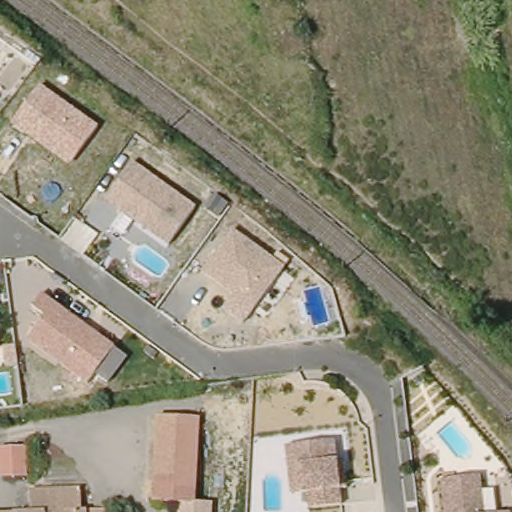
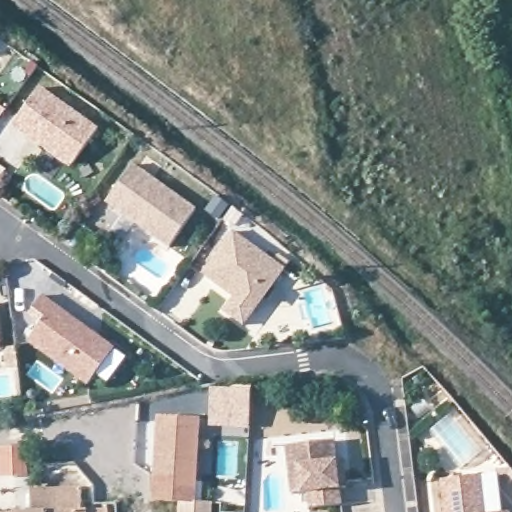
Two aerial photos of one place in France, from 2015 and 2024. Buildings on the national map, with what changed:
unchanged [(12,127),(41,87),(100,130),(71,167),(12,127)]
unchanged [(104,204),(133,164),(197,210),(170,247),(104,204)]
unchanged [(222,311),(233,297),(202,277),(233,233),(285,270),(243,327),(222,311)]
unchanged [(97,375),(88,386),(27,341),(45,318),(31,310),(42,294),(128,359),(112,385),(97,375)]
new [(209,385),(252,386),(250,430),(207,426),(209,385)]
unchanged [(160,418),(202,422),(195,504),(213,506),(213,512),(175,512),(176,500),(152,498),(160,418)]
unchanged [(333,442),(337,462),(340,488),(342,507),(307,512),(305,495),(290,498),(287,465),(283,464),(283,450),(333,442)]
unchanged [(28,477),(0,479),(0,448),(27,445),(28,477)]
unchanged [(486,512),(442,512),(440,482),(483,476),(486,512)]
unchanged [(87,489),(86,512),(35,512),(35,488),(87,489)]
unchanged [(511,512),(507,512),(511,511),(511,512)]

